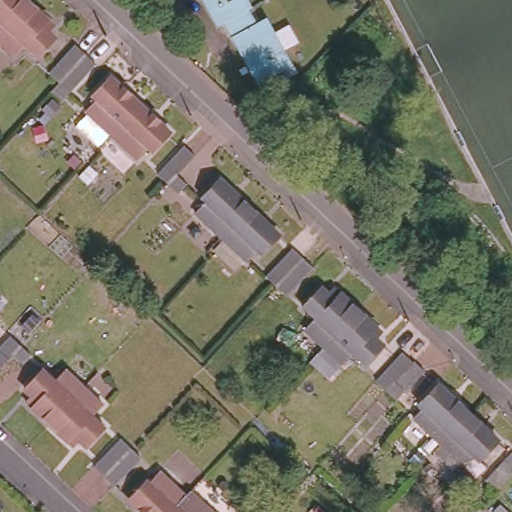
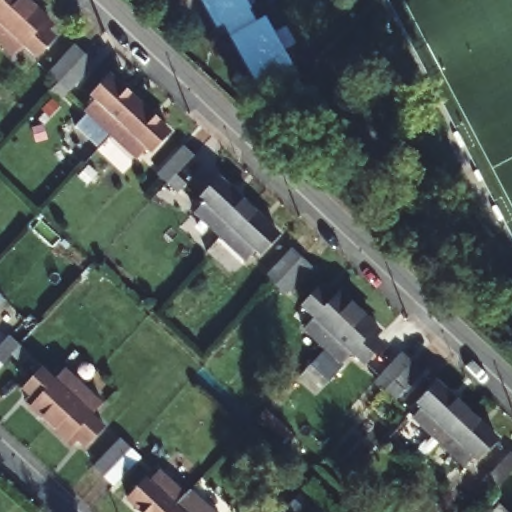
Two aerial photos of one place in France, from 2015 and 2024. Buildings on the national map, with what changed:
unchanged [(0,0),(31,0),(33,1),(0,37),(0,0)]
unchanged [(284,55),(277,58),(282,68),(258,81),(235,41),(218,13),(212,15),(204,0),(244,0),(252,13),(257,9),(284,55)]
unchanged [(49,20),(55,24),(51,29),(57,35),(40,55),(28,45),(18,55),(0,38),(0,37),(33,1),(50,18),(49,20)]
unchanged [(74,44),(82,52),(94,64),(67,92),(57,82),(55,81),(47,73),(74,44)]
unchanged [(96,99),(92,96),(109,77),(139,105),(112,134),(86,110),(96,99)]
unchanged [(139,105),(167,131),(150,150),(147,148),(138,158),(112,134),(139,105)]
unchanged [(176,193),(165,184),(156,174),(182,145),(192,155),(175,174),(185,183),(176,193)]
unchanged [(209,197),(205,194),(224,173),(254,201),(225,232),(200,207),(209,197)]
unchanged [(217,243),(227,232),(225,232),(254,201),(282,228),(264,248),(260,245),(250,255),(247,252),(237,263),(217,243)]
unchanged [(312,266),(285,294),(279,288),(275,284),(265,276),(292,247),(301,257),(305,261),(312,266)]
unchanged [(315,311),(304,301),(322,281),(330,288),(332,284),(337,289),(340,288),(357,304),(325,340),(305,321),(315,311)]
unchanged [(357,304),(374,319),(373,322),(378,326),(374,330),(382,338),(364,357),(354,347),(344,357),(325,340),(357,304)]
unchanged [(0,331),(8,338),(11,341),(3,349),(0,346),(0,331)]
unchanged [(394,400),(384,390),(374,380),(401,352),(411,361),(412,360),(422,370),(404,389),(393,380),(392,382),(402,391),(394,400)]
unchanged [(27,405),(22,400),(27,395),(20,388),(37,369),(50,380),(59,370),(77,387),(44,423),(26,407),(27,405)]
unchanged [(424,407),(420,403),(439,383),(467,410),(439,440),(415,416),(424,407)]
unchanged [(95,404),(85,414),(97,426),(80,445),(72,438),(68,442),(62,437),(60,438),(44,423),(77,387),(95,404)]
unchanged [(467,410),(497,438),(477,458),(474,454),(465,464),(439,440),(467,410)]
unchanged [(113,484),(104,475),(93,465),(119,437),(130,447),(139,455),(113,484)]
unchanged [(510,452),(512,453),(512,471),(494,490),(484,481),(510,452)]
unchanged [(146,481),(155,471),(181,497),(167,512),(138,512),(124,498),(142,478),(146,481)]
unchanged [(209,512),(167,512),(181,497),(187,491),(209,512)]

